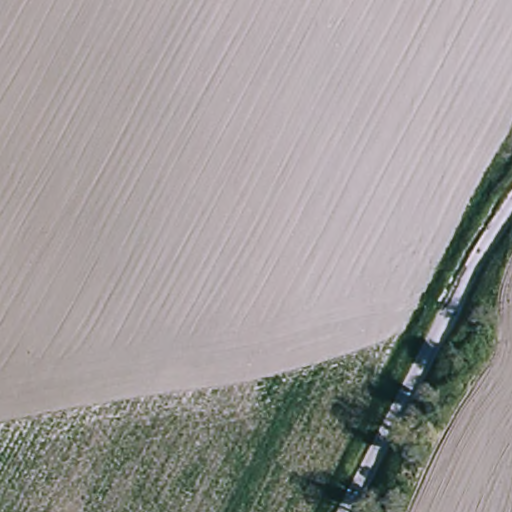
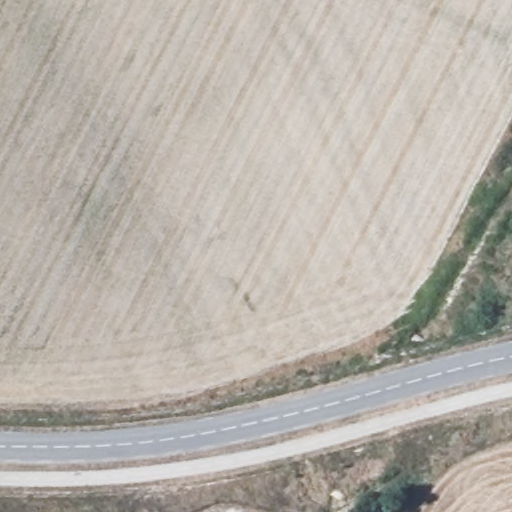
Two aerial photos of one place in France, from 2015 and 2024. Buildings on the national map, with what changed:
[]

